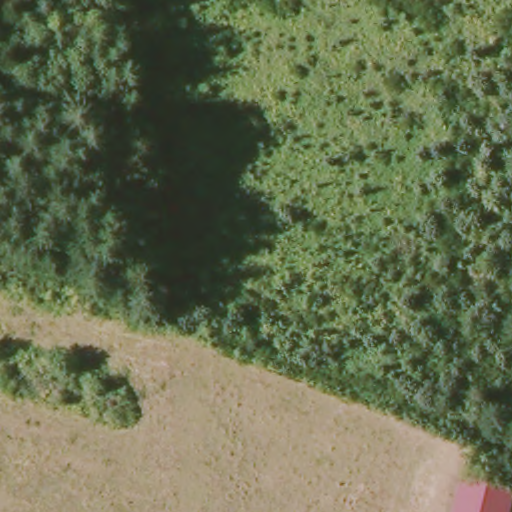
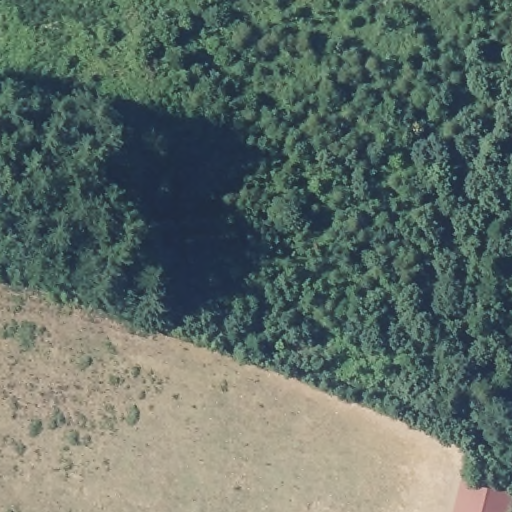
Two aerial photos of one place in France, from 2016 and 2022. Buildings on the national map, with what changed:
unchanged [(466,478),(511,490),(505,512),(457,512),(466,478)]

